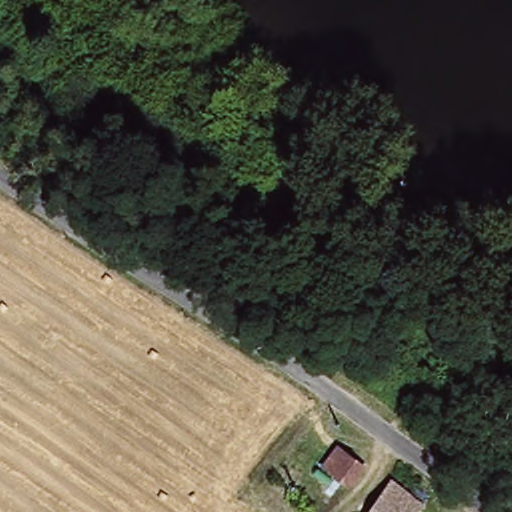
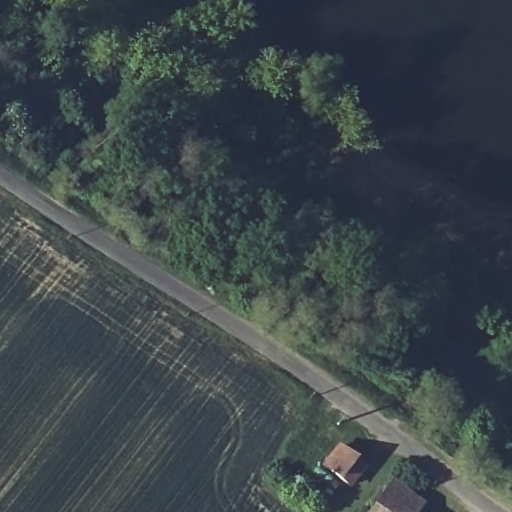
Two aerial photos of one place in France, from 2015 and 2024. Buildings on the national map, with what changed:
unchanged [(393,260),(389,266),(384,269),(379,270),(374,269),(370,266),(366,260),(366,255),(367,249),(372,244),(378,242),(384,243),(390,246),(393,251),(393,256),(393,260)]
unchanged [(353,492),(329,476),(343,455),(367,472),(353,492)]
unchanged [(417,512),(367,512),(388,481),(421,505),(417,512)]

